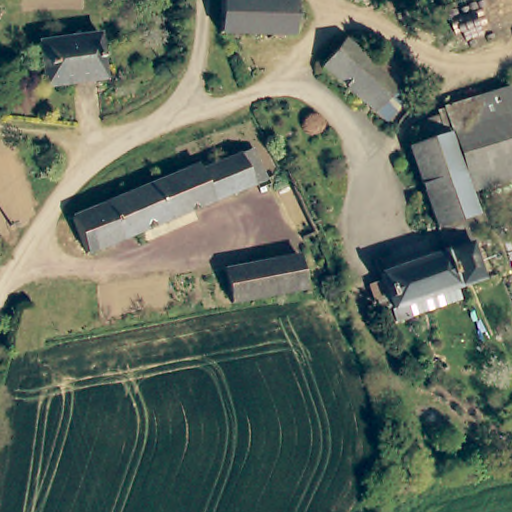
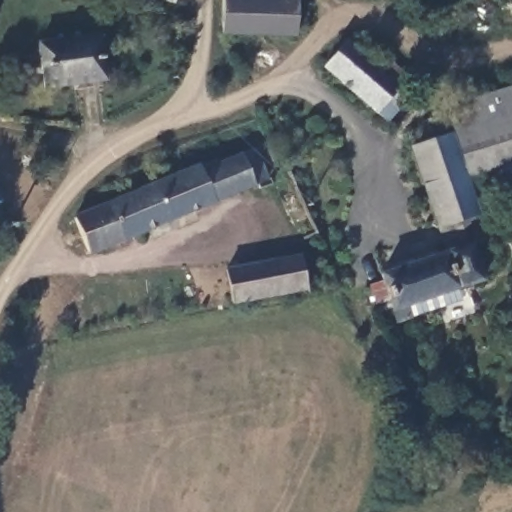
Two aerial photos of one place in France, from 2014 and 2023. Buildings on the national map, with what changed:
unchanged [(151,0),(156,0),(156,1),(151,0)]
unchanged [(226,34),(225,0),(296,0),(297,33),(226,34)]
unchanged [(362,62),(397,93),(377,121),(360,101),(317,65),(340,38),(365,59),(362,62)]
unchanged [(100,40),(103,85),(43,89),(39,44),(100,40)]
unchanged [(224,96),(221,97),(220,97),(217,97),(214,95),(212,92),(212,89),(214,86),(217,84),(220,83),(224,84),(226,87),(227,90),(226,94),(224,96)]
unchanged [(463,176),(453,127),(447,106),(493,92),(512,87),(512,164),(463,176)]
unchanged [(408,312),(403,298),(388,303),(379,277),(377,269),(441,247),(406,142),(426,137),(421,117),(442,113),(441,107),(447,106),(452,128),(453,134),(457,155),(461,177),(472,213),(474,222),(474,224),(478,237),(466,239),(478,275),(471,277),(453,283),(457,297),(408,312)]
unchanged [(246,158),(257,189),(81,252),(65,217),(191,172),(193,177),(246,158)]
unchanged [(302,262),(303,293),(260,295),(229,296),(228,264),(302,262)]

